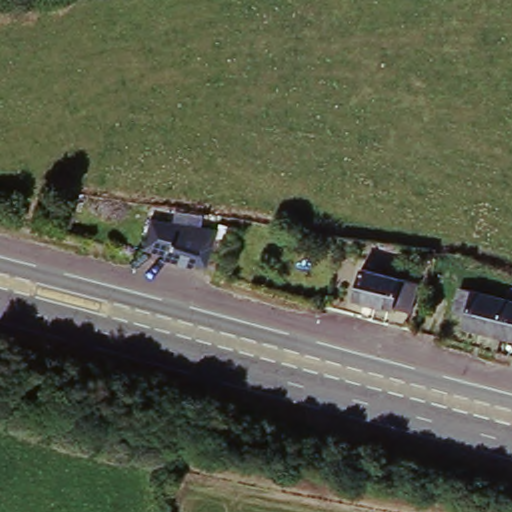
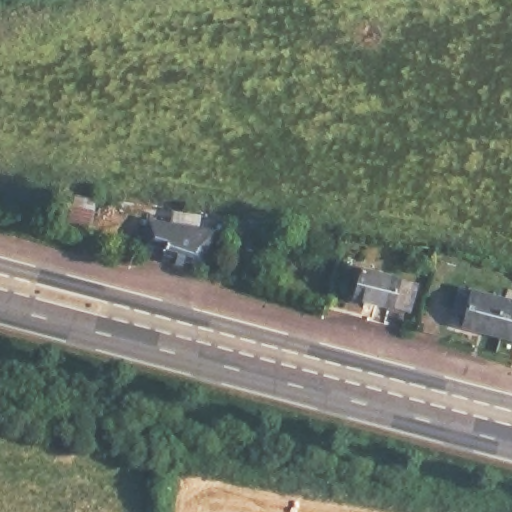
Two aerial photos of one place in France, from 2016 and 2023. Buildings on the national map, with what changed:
unchanged [(209,230),(199,265),(138,251),(145,217),(209,230)]
unchanged [(419,282),(411,310),(359,295),(366,268),(419,282)]
unchanged [(501,335),(462,323),(466,311),(454,307),(458,286),(509,299),(501,335)]
unchanged [(512,300),(512,337),(501,335),(509,299),(512,300)]

